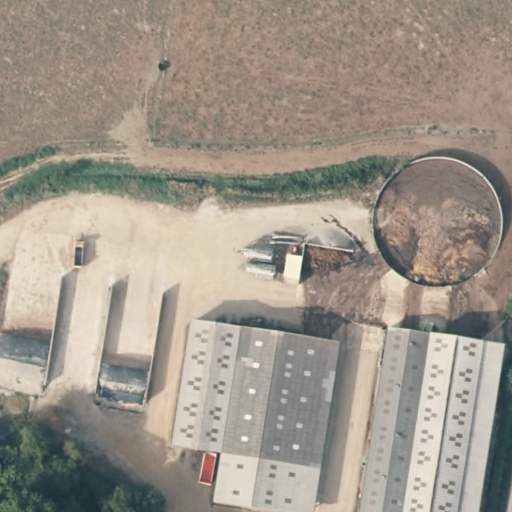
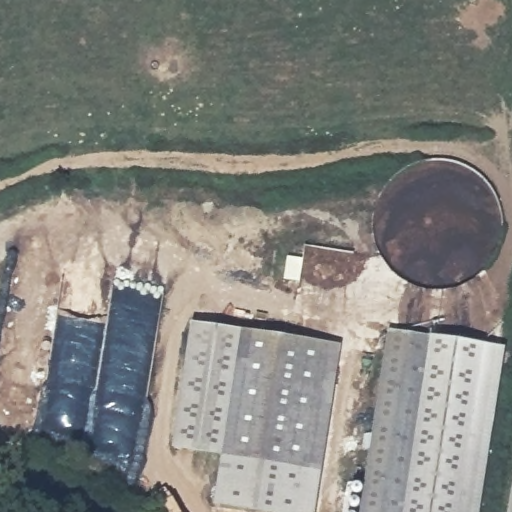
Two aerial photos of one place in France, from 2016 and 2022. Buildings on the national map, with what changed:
unchanged [(226,452),(175,445),(197,320),(245,327),(226,452)]
unchanged [(387,322),(424,329),(395,512),(357,512),(387,322)]
unchanged [(255,507),(219,502),(226,452),(245,327),(275,331),(255,507)]
unchanged [(424,329),(493,341),(465,512),(395,512),(424,329)]
unchanged [(341,340),(317,512),(289,512),(255,507),(275,331),(341,340)]

